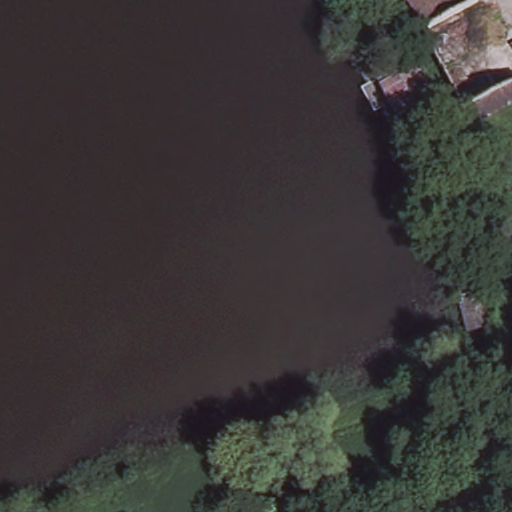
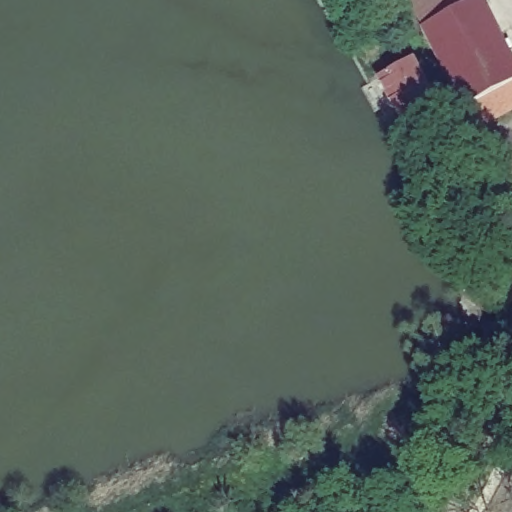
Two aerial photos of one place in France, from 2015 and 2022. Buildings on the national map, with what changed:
unchanged [(477,0),(419,29),(403,0),(476,0),(477,0)]
new [(477,0),(482,0),(512,59),(512,85),(462,110),(419,29),(477,0)]
unchanged [(432,105),(402,121),(380,82),(410,66),(432,105)]
unchanged [(452,265),(471,260),(492,335),(472,340),(452,265)]

